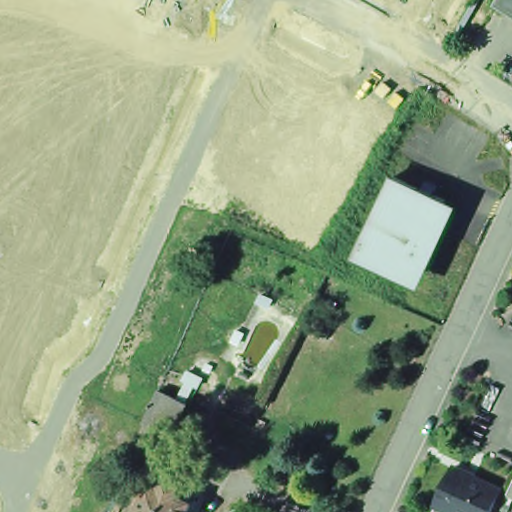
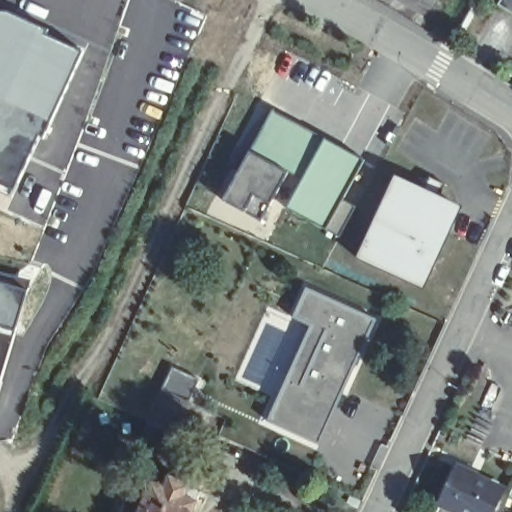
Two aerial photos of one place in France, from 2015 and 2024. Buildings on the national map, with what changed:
unchanged [(500,0),(512,0),(512,7),(500,0)]
new [(9,11),(48,28),(46,31),(85,49),(52,123),(13,196),(0,190),(0,10),(9,11)]
new [(286,208),(301,179),(288,172),(262,221),(223,202),(273,109),(365,160),(342,199),(357,207),(340,238),(286,208)]
unchanged [(403,170),(428,181),(435,171),(449,177),(444,188),(454,193),(416,277),(364,253),(403,170)]
new [(28,288),(13,333),(0,329),(0,278),(28,288)]
new [(267,421),(310,325),(293,318),(307,287),(376,319),(321,445),(267,421)]
new [(4,369),(0,383),(0,368),(4,369)]
unchanged [(154,423),(169,390),(196,403),(182,435),(154,423)]
unchanged [(143,510),(159,476),(151,472),(158,456),(186,468),(184,472),(195,477),(206,482),(201,493),(192,512),(134,512),(136,507),(143,510)]
unchanged [(499,490),(489,512),(451,512),(434,504),(451,467),(499,490)]

